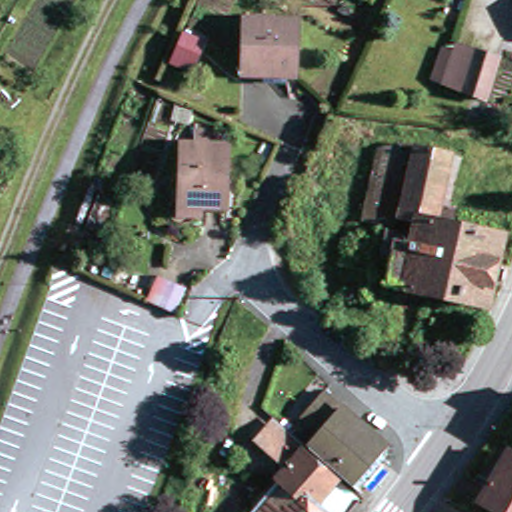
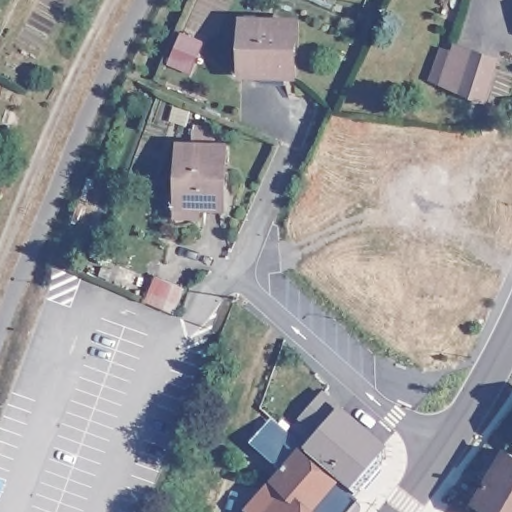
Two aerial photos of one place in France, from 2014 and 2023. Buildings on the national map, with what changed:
unchanged [(270,82),(271,74),(240,73),(242,18),(297,20),(297,61),(296,74),(296,82),(270,82)]
new [(169,62),(182,35),(204,45),(192,73),(169,62)]
unchanged [(483,101),(430,78),(442,49),(453,53),(455,48),(496,60),(483,101)]
demolished [(373,255),(378,230),(403,235),(407,220),(388,217),(386,227),(359,221),(372,144),(397,145),(440,154),(440,156),(453,158),(442,208),(446,209),(442,226),(495,237),(488,267),(498,269),(497,284),(486,282),(481,304),(402,288),(400,295),(387,292),(388,286),(380,284),(383,258),(373,255)]
unchanged [(222,152),(220,210),(175,209),(176,149),(222,152)]
unchanged [(188,284),(177,309),(150,297),(160,273),(188,284)]
unchanged [(320,430),(299,412),(321,388),(382,440),(383,456),(357,488),(306,445),(320,430)]
unchanged [(284,466),(253,440),(262,430),(260,428),(264,422),(295,449),(300,444),(358,496),(344,512),(317,512),(274,478),(284,466)]
unchanged [(512,458),(512,512),(487,512),(471,503),(502,452),(512,458)]
unchanged [(248,496),(255,489),(261,493),(274,478),(317,512),(255,512),(260,506),(248,496)]

